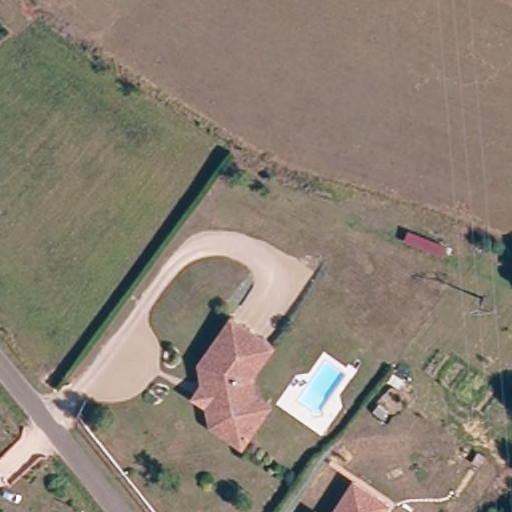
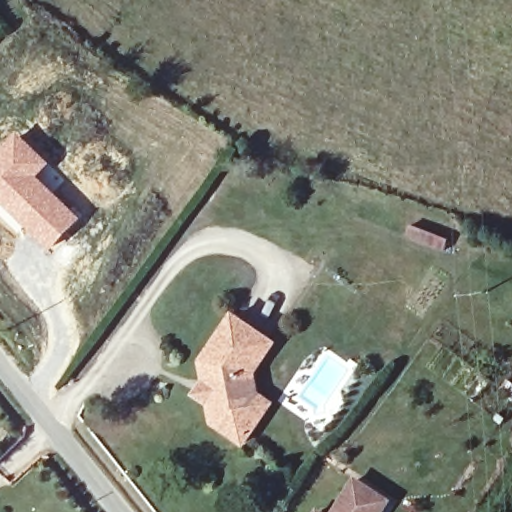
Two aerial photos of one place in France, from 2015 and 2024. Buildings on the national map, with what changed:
new [(17,131),(51,161),(40,176),(82,217),(49,251),(0,203),(0,151),(17,131)]
unchanged [(435,238),(430,248),(392,230),(397,220),(435,238)]
unchanged [(242,435),(210,416),(199,356),(230,306),(263,328),(237,367),(244,396),(260,407),(242,435)]
unchanged [(244,396),(237,367),(263,328),(276,336),(253,376),(258,388),(268,395),(260,407),(244,396)]
unchanged [(355,479),(388,499),(380,512),(334,512),(355,479)]
unchanged [(317,511),(318,512),(317,512),(317,511)]

